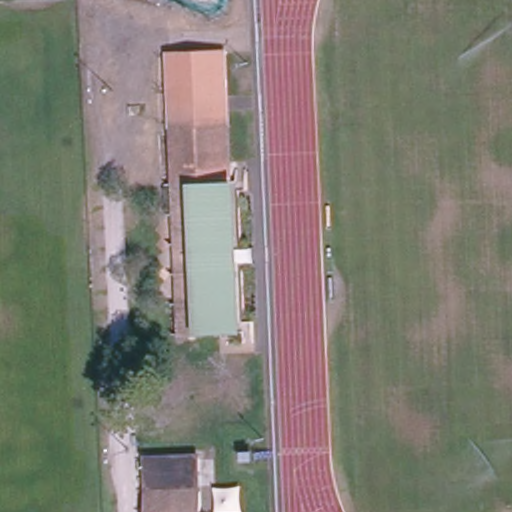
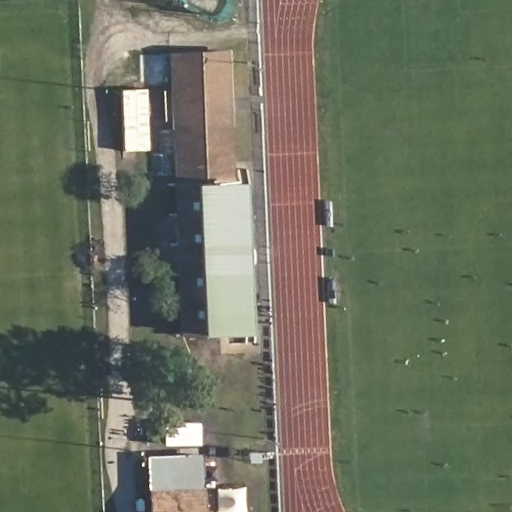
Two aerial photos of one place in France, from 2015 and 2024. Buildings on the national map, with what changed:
unchanged [(215,190),(196,190),(202,337),(180,336),(166,51),(225,49),(231,189),(215,190)]
new [(122,150),(120,90),(145,89),(146,150),(122,150)]
unchanged [(231,189),(240,189),(246,335),(202,337),(196,190),(215,190),(231,189)]
unchanged [(202,457),(204,512),(148,512),(145,459),(202,457)]

